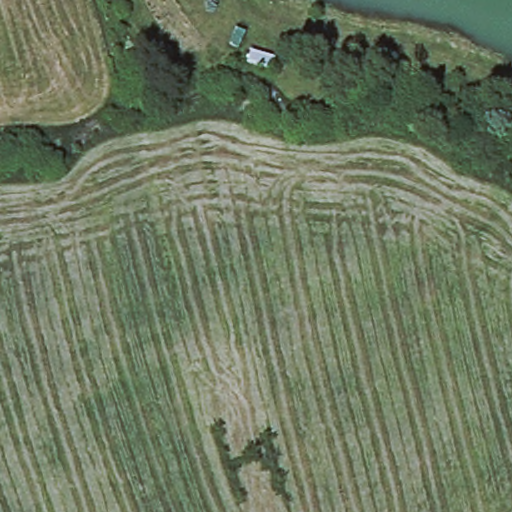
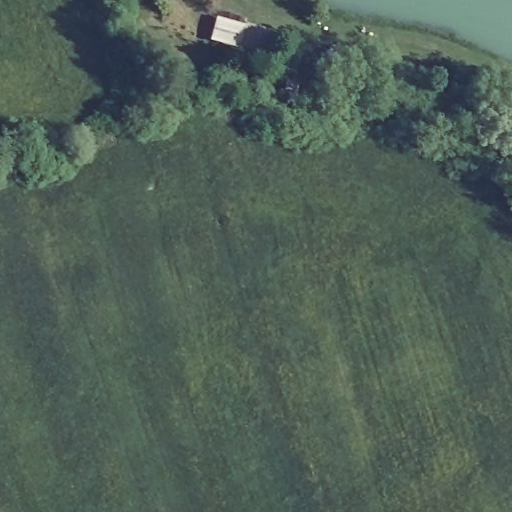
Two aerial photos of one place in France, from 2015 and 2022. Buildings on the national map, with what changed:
unchanged [(284,42),(275,73),(244,65),(253,35),(284,42)]

